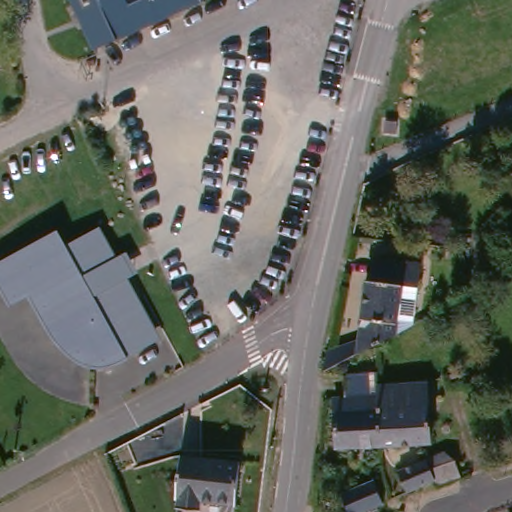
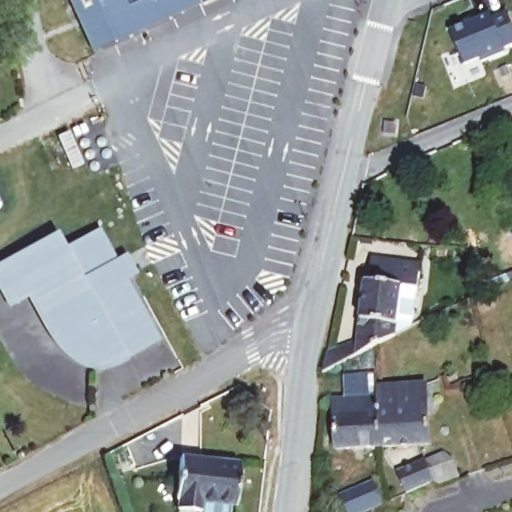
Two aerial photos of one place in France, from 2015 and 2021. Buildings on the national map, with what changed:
unchanged [(91,49),(70,0),(200,0),(114,39),(91,49)]
new [(512,24),(512,43),(506,45),(506,48),(463,66),(450,32),(491,14),(493,17),(506,11),(512,24)]
demolished [(400,124),(387,122),(388,110),(400,111),(400,124)]
unchanged [(396,136),(383,135),(385,122),(396,124),(396,136)]
unchanged [(99,228),(116,261),(124,257),(132,271),(124,276),(141,308),(154,330),(146,333),(151,342),(119,360),(116,361),(111,363),(107,365),(102,366),(97,366),(92,366),(87,365),(82,363),(77,361),(73,358),(69,355),(65,351),(64,350),(61,348),(58,345),(55,340),(52,336),(50,332),(46,328),(45,324),(27,292),(8,302),(0,287),(0,264),(55,235),(62,247),(99,228)]
unchanged [(400,281),(393,330),(373,340),(343,356),(322,367),(325,346),(327,345),(357,330),(365,276),(367,276),(370,254),(384,256),(419,260),(416,283),(400,281)]
unchanged [(334,450),(332,397),(343,396),(342,373),(375,371),(376,385),(380,446),(334,450)]
unchanged [(425,382),(428,442),(380,446),(376,385),(425,382)]
unchanged [(452,460),(458,476),(440,483),(433,480),(405,493),(396,471),(425,458),(425,459),(443,452),(452,460)]
unchanged [(233,502),(201,500),(200,512),(189,512),(172,510),(174,496),(171,495),(177,455),(235,461),(233,502)]
unchanged [(358,512),(339,512),(332,497),(367,482),(375,504),(358,512)]

